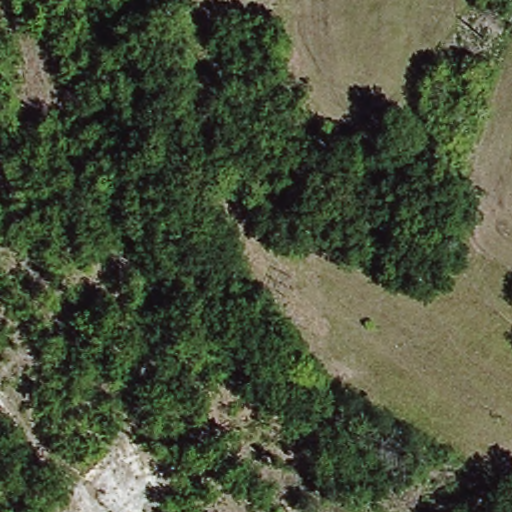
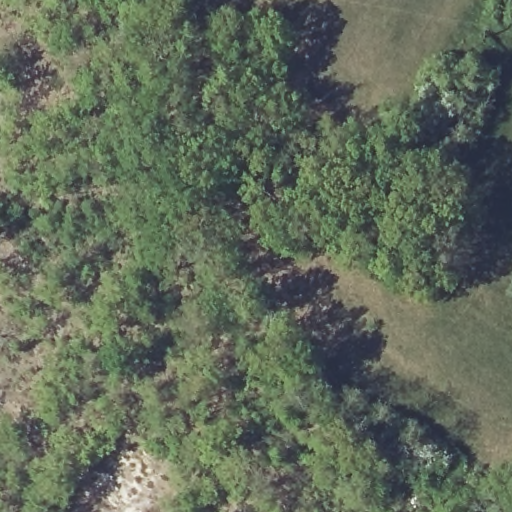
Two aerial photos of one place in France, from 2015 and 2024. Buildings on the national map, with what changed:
[]

